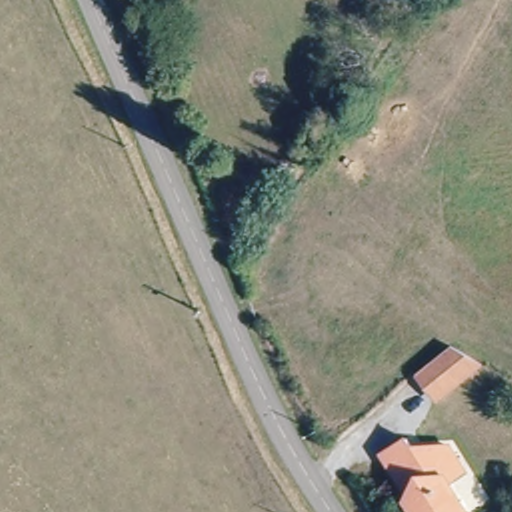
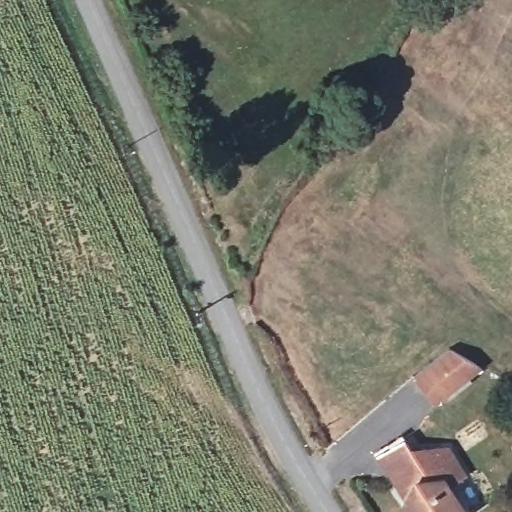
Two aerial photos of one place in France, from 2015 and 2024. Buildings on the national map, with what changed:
unchanged [(452,347),(482,365),(450,394),(436,405),(413,378),(426,367),(452,347)]
unchanged [(413,467),(421,448),(438,445),(459,480),(441,489),(455,512),(403,512),(371,457),(396,442),(413,467)]

